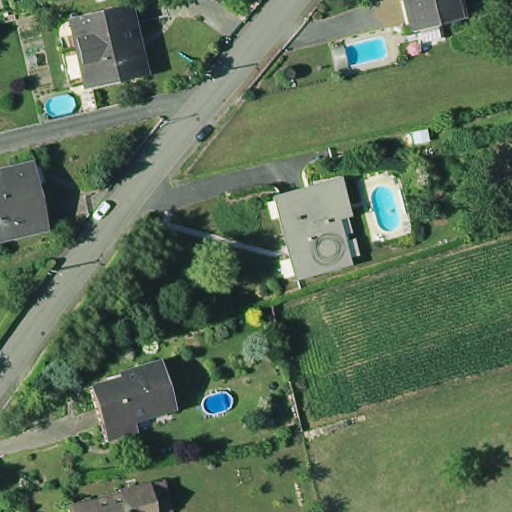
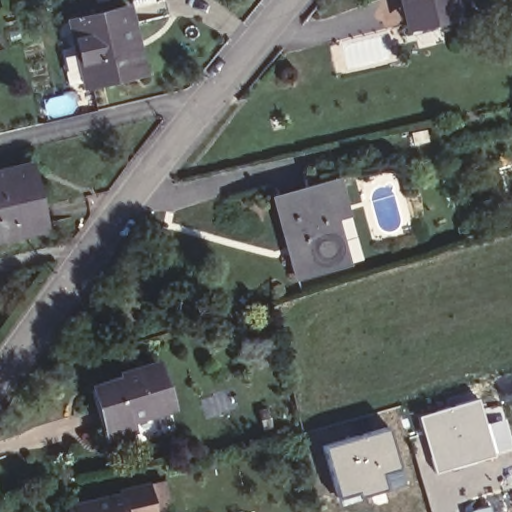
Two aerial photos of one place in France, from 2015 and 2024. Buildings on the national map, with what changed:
unchanged [(446,17),(445,15),(426,19),(422,0),(464,0),(467,12),(446,17)]
unchanged [(130,75),(84,85),(82,80),(74,46),(67,21),(127,7),(136,41),(134,41),(141,74),(130,75)]
unchanged [(32,165),(37,185),(47,227),(2,239),(0,239),(0,173),(27,166),(32,165)]
unchanged [(349,235),(300,249),(287,202),(286,196),(334,182),(336,190),(349,235)]
unchanged [(349,235),(357,262),(306,277),(300,255),(302,254),(300,249),(349,235)]
unchanged [(127,374),(162,365),(174,407),(135,419),(137,428),(117,435),(102,387),(129,380),(127,374)]
new [(479,396),(487,421),(504,416),(512,441),(512,449),(435,473),(417,414),(479,396)]
new [(387,425),(405,483),(358,497),(339,499),(322,445),(387,425)]
unchanged [(66,507),(121,495),(120,490),(149,484),(162,481),(165,492),(169,511),(165,512),(67,512),(66,507)]
new [(489,502),(493,512),(464,512),(464,511),(489,502)]

